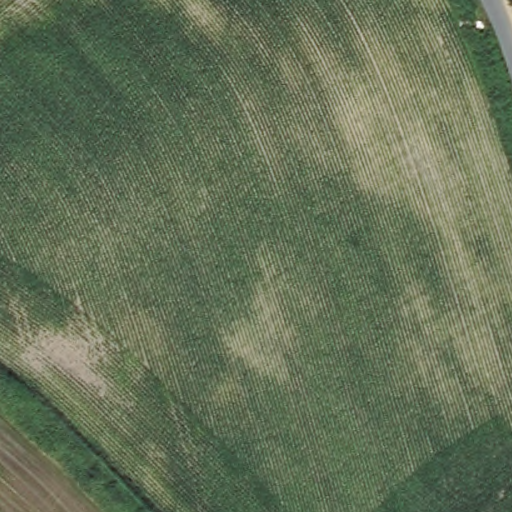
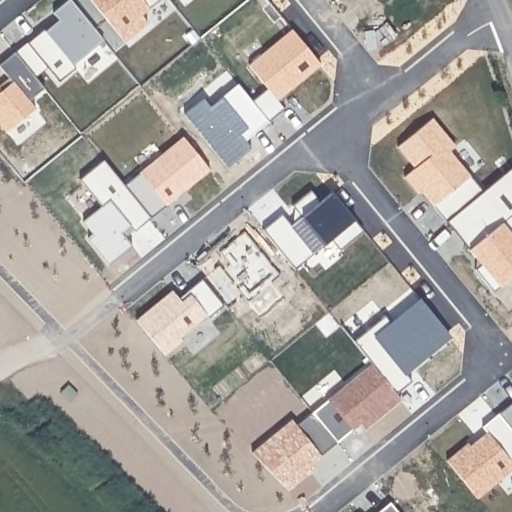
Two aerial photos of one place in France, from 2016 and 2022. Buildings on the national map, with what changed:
new [(0,69),(0,65),(14,53),(26,44),(44,30),(45,32),(59,21),(53,13),(68,0),(69,0),(103,41),(73,65),(75,69),(59,83),(47,69),(35,79),(44,90),(29,102),(35,110),(6,135),(0,127),(0,86),(8,80),(0,69)]
new [(141,16),(147,24),(124,42),(89,0),(160,0),(141,16)]
new [(292,30),(319,65),(277,100),(284,109),(268,122),(250,102),(266,89),(248,66),(292,30)]
new [(421,191),(418,194),(404,177),(415,169),(398,147),(433,120),(456,147),(449,152),(483,192),(512,169),(512,170),(512,278),(492,293),(474,270),(481,266),(469,250),(446,222),(421,191)]
new [(183,138),(209,171),(150,219),(124,186),(183,138)]
new [(132,247),(109,265),(88,239),(92,235),(82,222),(100,207),(79,180),(103,161),(124,186),(150,219),(134,232),(133,231),(124,238),(132,247)]
new [(290,226),(293,225),(294,210),(292,206),(310,191),(319,202),(331,193),(363,232),(339,251),(330,240),(294,270),(262,231),(281,215),(290,226)]
new [(384,316),(392,325),(420,301),(449,337),(412,367),(409,364),(402,370),(412,382),(397,395),(372,365),(353,342),(384,316)]
new [(372,365),(397,395),(401,401),(364,430),(359,425),(336,443),(312,414),(372,365)]
new [(498,415),(512,403),(512,432),(498,415)]
new [(468,444),(470,447),(486,433),(482,427),(498,415),(512,432),(512,470),(477,499),(446,462),(468,444)]
new [(397,512),(380,512),(390,503),(397,512)]

